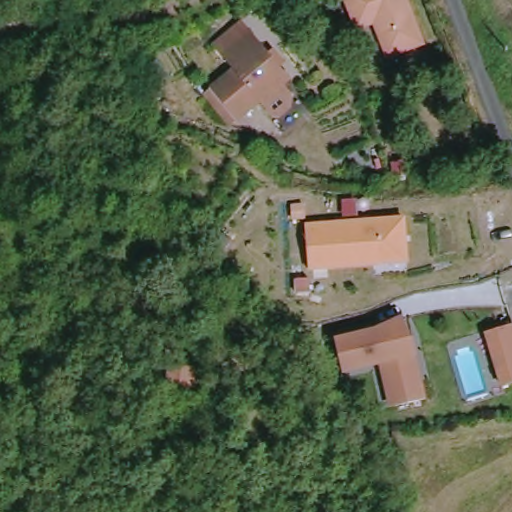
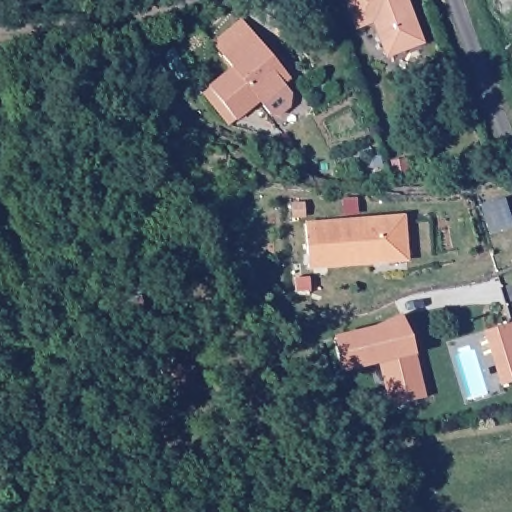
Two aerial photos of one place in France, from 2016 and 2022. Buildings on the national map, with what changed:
unchanged [(431,46),(396,58),(385,23),(365,29),(355,0),(416,0),(431,46)]
unchanged [(213,93),(219,88),(236,73),(225,61),(214,49),(241,27),(251,38),(268,56),(271,53),(283,65),(280,69),(290,82),(281,88),(279,96),(268,105),(261,105),(245,119),(239,124),(213,93)]
unchanged [(407,218),(410,257),(378,260),(378,264),(312,269),(309,226),(407,218)]
unchanged [(411,333),(425,393),(396,400),(385,355),(341,365),(341,349),(334,334),(356,329),(373,325),(387,319),(401,312),(411,333)]
unchanged [(507,386),(490,331),(512,324),(512,384),(507,386)]

